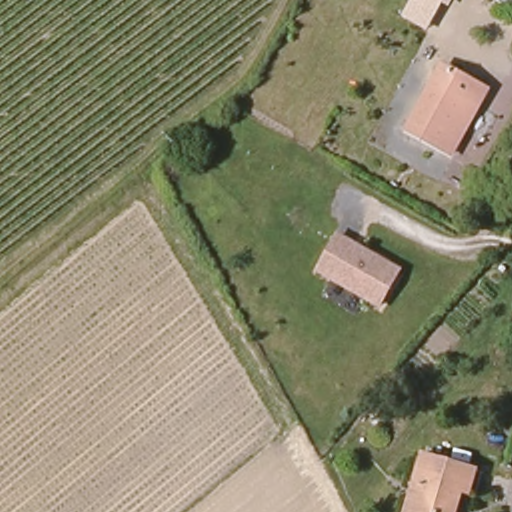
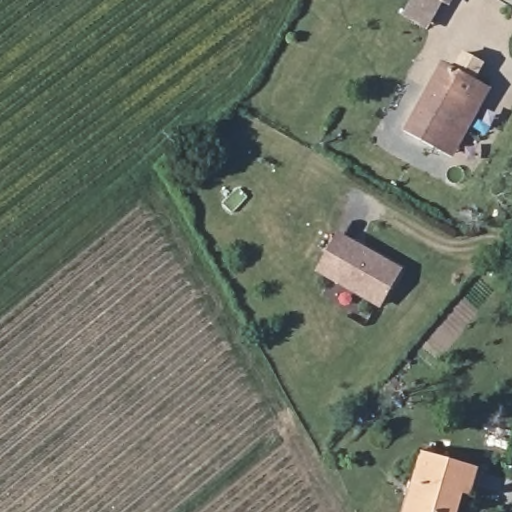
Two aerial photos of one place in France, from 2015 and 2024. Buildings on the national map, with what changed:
unchanged [(431,3),(426,0),(433,0),(431,3)]
unchanged [(448,150),(418,137),(409,132),(439,65),(453,71),(484,85),(476,102),(453,152),(448,150)]
unchanged [(379,306),(348,288),(317,272),(337,237),(367,252),(399,271),(379,306)]
unchanged [(402,512),(424,451),(473,467),(479,469),(473,493),(464,491),(459,488),(451,512),(402,512)]

